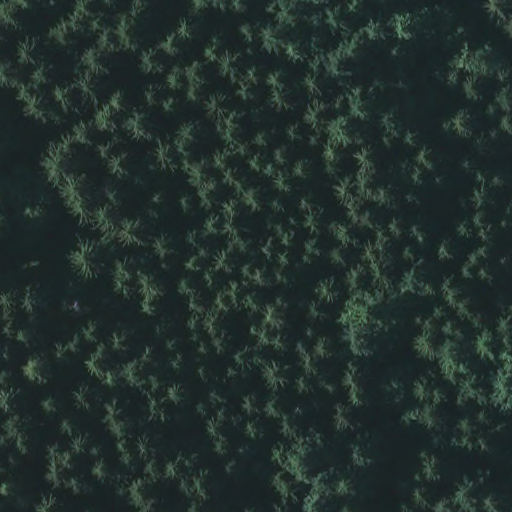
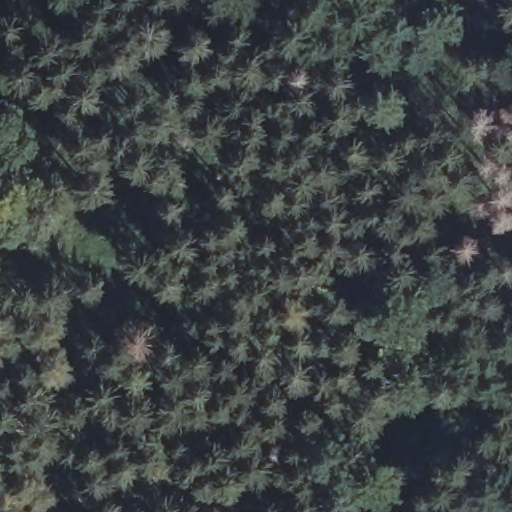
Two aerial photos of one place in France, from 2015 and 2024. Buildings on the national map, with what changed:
unchanged [(77,217),(95,215),(95,228),(79,229),(77,217)]
unchanged [(5,285),(25,277),(32,293),(12,300),(5,285)]

